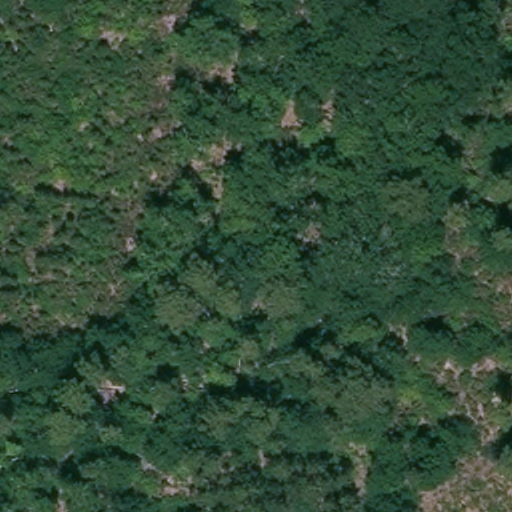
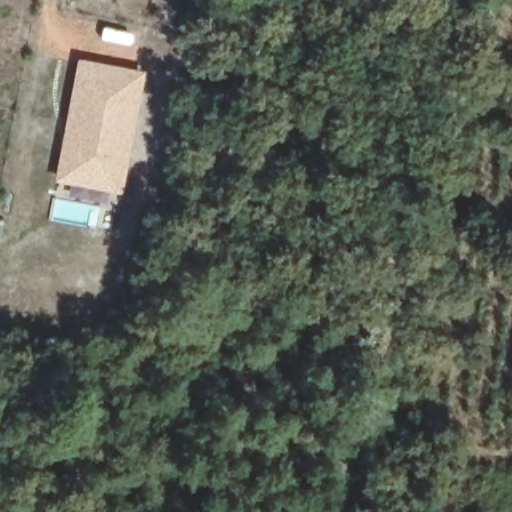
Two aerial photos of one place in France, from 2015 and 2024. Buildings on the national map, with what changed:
new [(145,71),(123,192),(57,182),(79,61),(145,71)]

